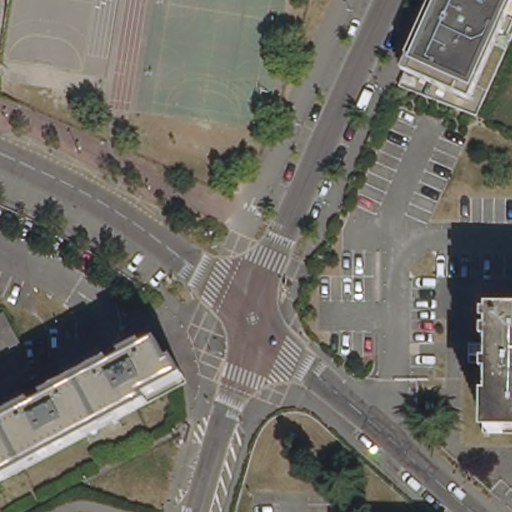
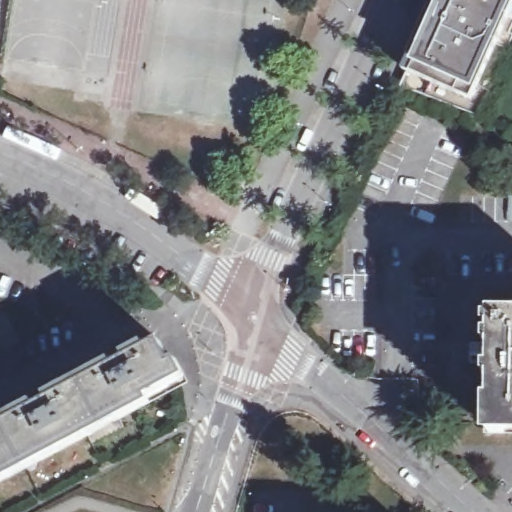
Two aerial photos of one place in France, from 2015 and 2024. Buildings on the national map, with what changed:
unchanged [(435,0),(512,0),(472,90),(407,61),(435,0)]
unchanged [(5,310),(23,344),(0,358),(0,313),(5,310)]
unchanged [(508,344),(492,343),(493,312),(512,312),(512,416),(508,416),(508,344)]
unchanged [(52,403),(54,409),(115,378),(112,372),(147,354),(150,359),(165,352),(185,390),(0,487),(0,430),(52,403)]

